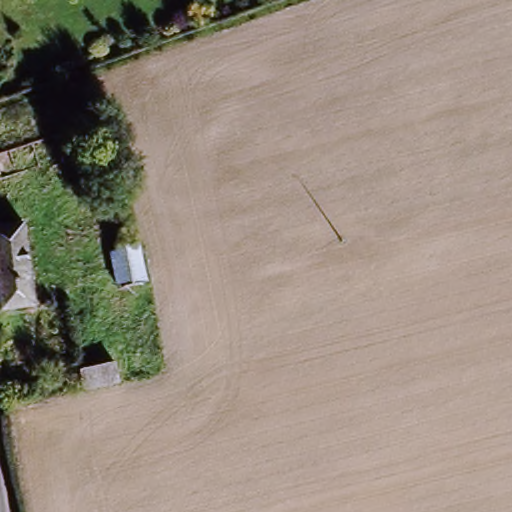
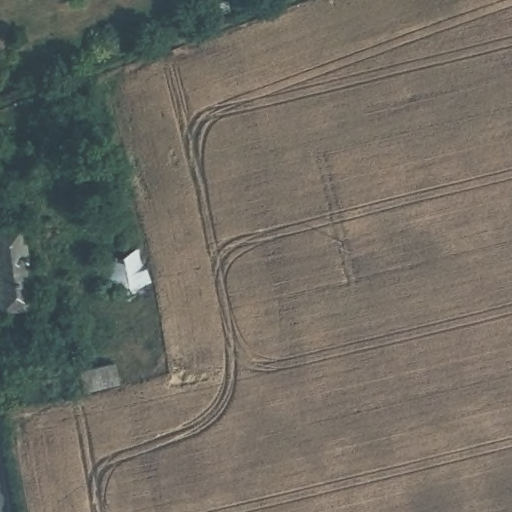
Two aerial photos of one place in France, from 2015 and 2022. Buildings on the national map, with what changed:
unchanged [(96,204),(123,202),(129,242),(138,240),(147,282),(111,287),(96,204)]
unchanged [(26,304),(0,308),(0,226),(19,225),(26,304)]
unchanged [(78,376),(113,368),(118,388),(83,396),(78,376)]

